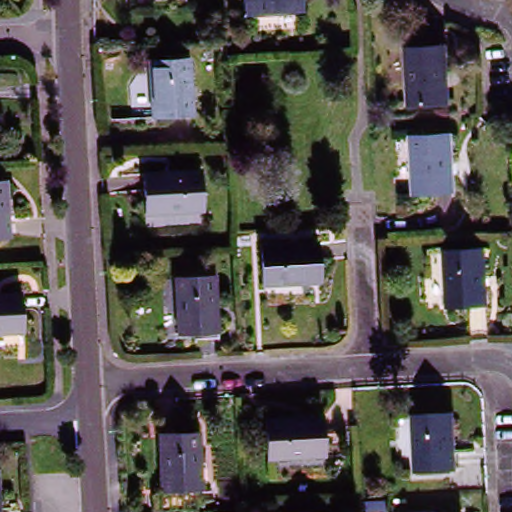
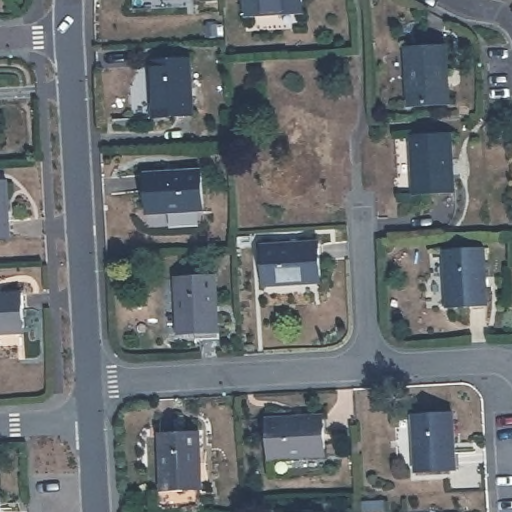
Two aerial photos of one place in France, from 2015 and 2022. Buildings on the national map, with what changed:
unchanged [(246,12),(246,0),(301,0),(301,10),(246,12)]
unchanged [(446,49),(449,104),(408,106),(405,51),(446,49)]
unchanged [(190,62),(192,115),(151,116),(149,64),(190,62)]
unchanged [(451,138),(454,192),(412,194),(410,140),(451,138)]
unchanged [(144,175),(201,171),(204,212),(146,215),(144,175)]
unchanged [(12,183),(14,239),(0,240),(0,183),(12,183)]
unchanged [(266,293),(265,281),(262,242),(319,239),(321,278),(321,290),(266,293)]
unchanged [(487,310),(447,312),(444,257),(484,255),(487,310)]
unchanged [(216,282),(218,337),(178,339),(176,284),(216,282)]
unchanged [(17,294),(19,334),(0,335),(0,295),(17,294)]
unchanged [(455,471),(415,473),(412,416),(452,415),(455,471)]
unchanged [(321,417),(323,457),(269,460),(267,420),(321,417)]
unchanged [(194,429),(197,484),(157,486),(154,431),(194,429)]

